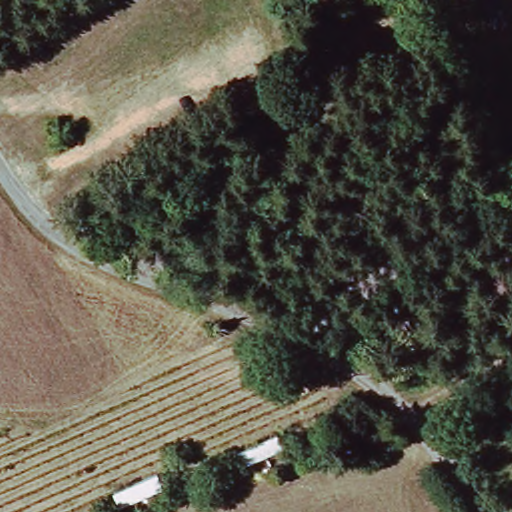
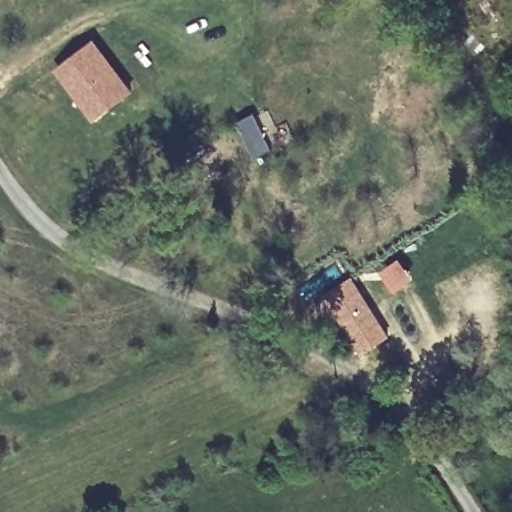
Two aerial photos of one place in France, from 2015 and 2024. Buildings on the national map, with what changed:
new [(95,38),(136,91),(95,122),(55,69),(95,38)]
new [(324,295),(354,276),(392,336),(362,355),(324,295)]
unchanged [(367,442),(345,455),(337,443),(360,428),(367,442)]

